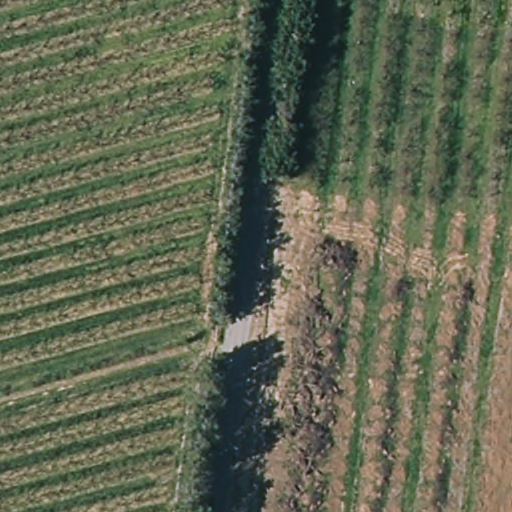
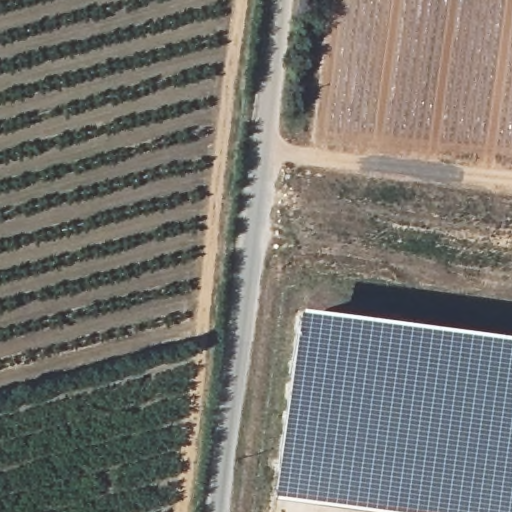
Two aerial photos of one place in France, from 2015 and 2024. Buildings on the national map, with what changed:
new [(512,325),(512,512),(415,512),(276,493),(302,297),(512,325)]

